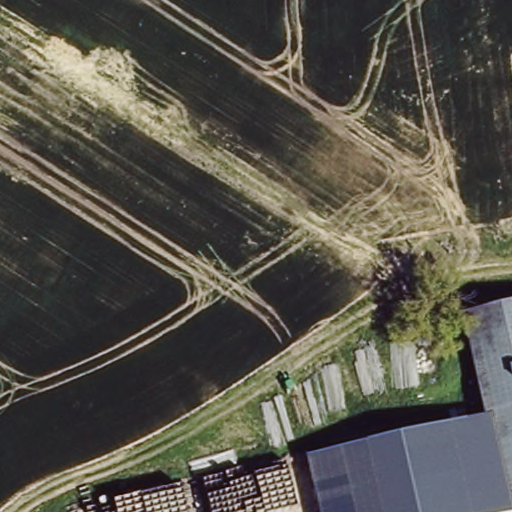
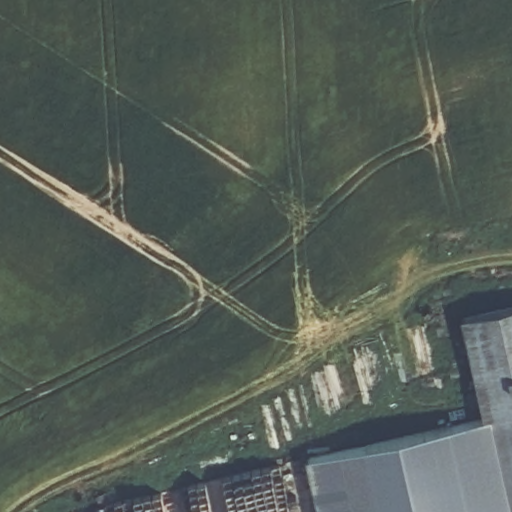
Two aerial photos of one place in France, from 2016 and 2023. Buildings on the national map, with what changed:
unchanged [(467,319),(485,317),(512,314),(512,414),(505,415),(487,419),(467,319)]
unchanged [(512,414),(512,450),(505,415),(512,414)]
unchanged [(512,512),(386,512),(374,446),(373,441),(487,419),(505,415),(512,450),(512,512)]
unchanged [(386,512),(313,512),(302,463),(374,446),(386,512)]

